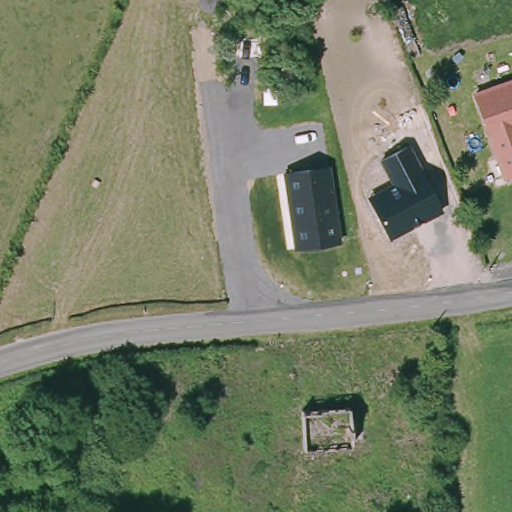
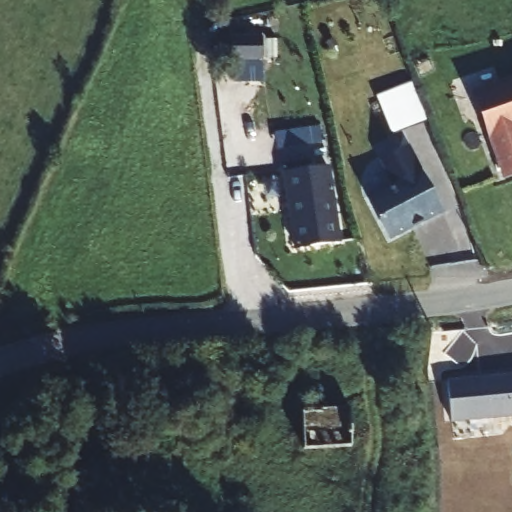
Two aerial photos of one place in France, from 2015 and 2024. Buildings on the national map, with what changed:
new [(232,83),(232,36),(262,36),(263,83),(232,83)]
new [(427,120),(392,135),(376,96),(410,81),(427,120)]
unchanged [(512,195),(507,196),(477,105),(512,93),(512,195)]
unchanged [(444,211),(389,240),(367,197),(392,184),(379,159),(410,143),(444,211)]
unchanged [(340,242),(293,248),(283,172),(330,165),(340,242)]
new [(512,373),(512,417),(450,423),(446,379),(512,373)]
unchanged [(348,408),(352,450),(307,456),(302,414),(348,408)]

